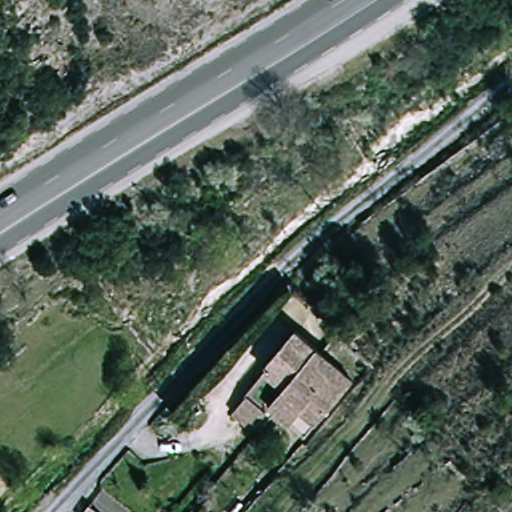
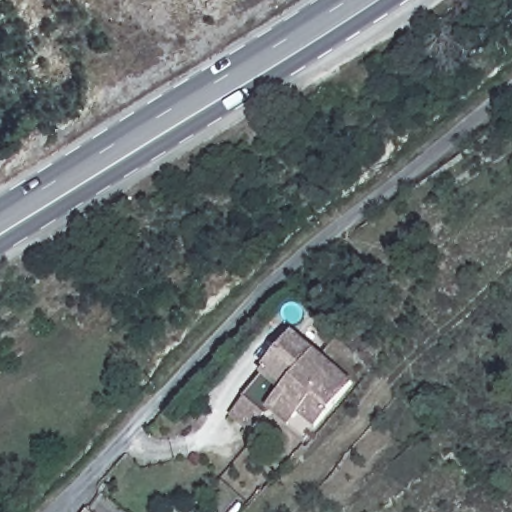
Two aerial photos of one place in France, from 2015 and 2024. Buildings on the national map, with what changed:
unchanged [(304,414),(294,425),(273,408),(254,431),(235,416),(250,398),(247,396),(270,370),(268,368),(298,333),(356,384),(318,427),(304,414)]
unchanged [(95,512),(81,512),(86,506),(95,512)]

